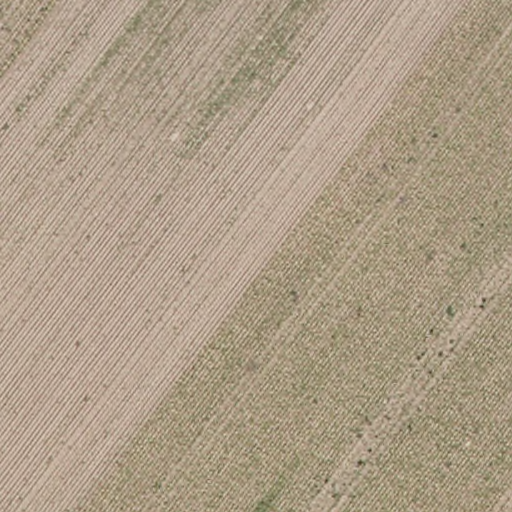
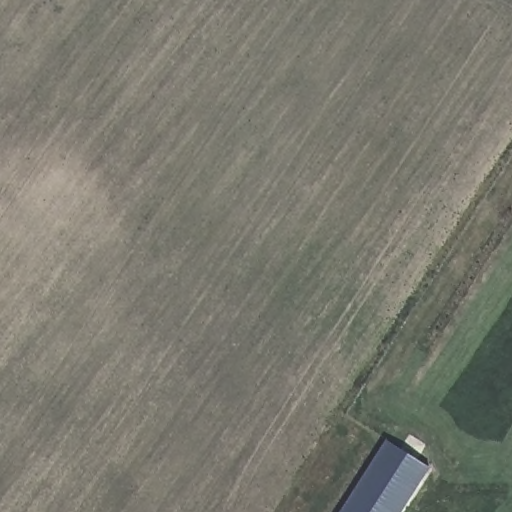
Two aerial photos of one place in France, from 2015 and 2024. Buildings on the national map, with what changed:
new [(430,469),(403,512),(341,512),(387,441),(430,469)]

